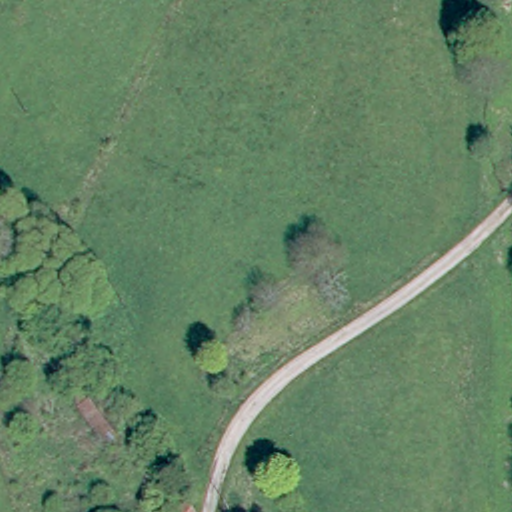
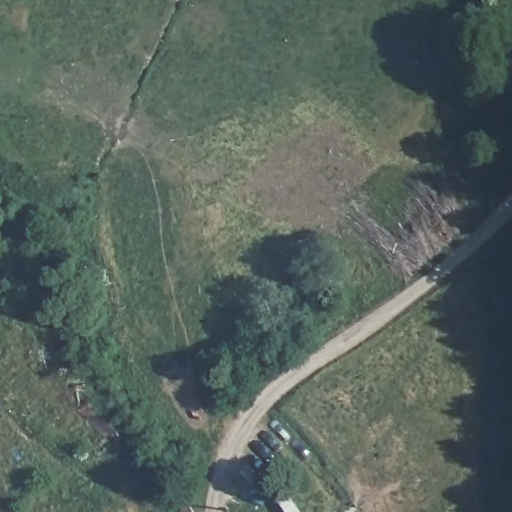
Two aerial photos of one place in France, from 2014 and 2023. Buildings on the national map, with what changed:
unchanged [(85,382),(92,406),(82,409),(75,385),(85,382)]
unchanged [(196,512),(183,512),(190,503),(196,512)]

